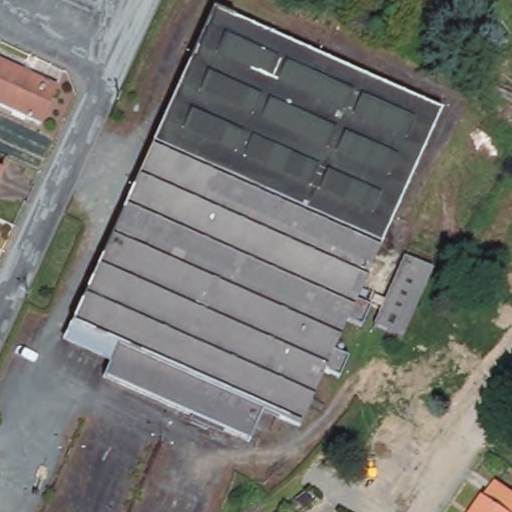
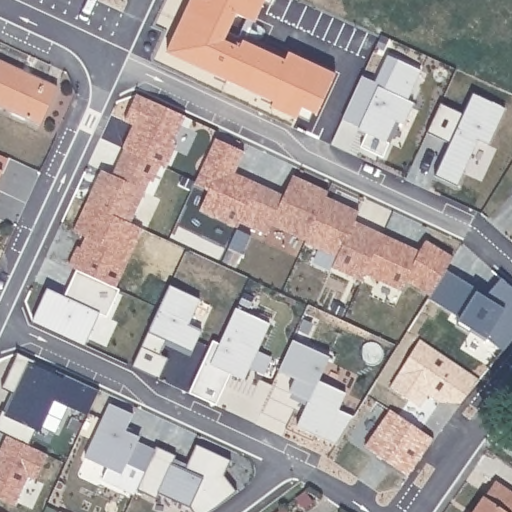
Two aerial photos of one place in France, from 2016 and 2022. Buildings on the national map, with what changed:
new [(225,80),(215,76),(166,53),(180,22),(185,12),(190,0),(207,0),(264,0),(254,23),(247,37),(293,57),(294,56),(335,75),(316,115),(301,108),(296,120),(270,107),(275,96),(272,102),(261,97),(225,80)]
demolished [(379,252),(350,317),(296,433),(260,417),(245,448),(100,382),(109,362),(63,342),(219,2),(447,104),(379,252)]
new [(375,81),(388,54),(421,69),(407,99),(415,102),(405,124),(400,122),(383,157),(360,147),(365,134),(357,130),(360,126),(343,120),(362,76),(375,81)]
unchanged [(0,110),(0,64),(55,92),(38,129),(0,110)]
new [(463,112),(471,93),(505,107),(489,144),(477,139),(457,187),(434,177),(448,142),(426,132),(440,102),(463,112)]
new [(130,130),(135,132),(138,126),(125,120),(136,94),(185,116),(172,142),(175,144),(165,167),(161,165),(125,148),(122,147),(130,130)]
new [(240,220),(236,226),(199,209),(207,189),(193,182),(214,137),(242,150),(233,171),(240,175),(256,183),(240,220)]
new [(113,173),(125,147),(161,165),(155,181),(150,179),(132,222),(87,202),(101,170),(113,173)]
new [(285,193),(293,174),(329,191),(326,196),(360,212),(355,222),(383,234),(366,272),(362,281),(332,267),(336,257),(305,242),(305,241),(271,225),(268,232),(241,220),(257,184),(285,193)]
new [(510,199),(512,196),(512,201),(510,199)]
new [(79,270),(68,265),(77,245),(85,236),(90,237),(73,230),(86,202),(142,227),(115,287),(79,270)]
new [(420,252),(425,242),(454,257),(430,296),(406,282),(402,290),(366,272),(383,234),(420,252)]
demolished [(401,338),(374,328),(403,263),(431,276),(401,338)]
new [(480,291),(477,293),(489,300),(493,295),(490,292),(500,280),(512,289),(512,341),(503,352),(470,333),(467,337),(454,329),(458,322),(425,302),(429,295),(445,270),(480,291)]
new [(120,289),(106,317),(98,312),(85,342),(35,318),(49,287),(67,296),(79,271),(120,289)]
new [(200,298),(189,323),(202,330),(194,351),(166,340),(160,352),(170,357),(161,377),(134,365),(170,285),(200,298)]
new [(224,386),(215,407),(187,394),(211,342),(219,345),(235,310),(268,325),(242,382),(224,372),(229,375),(224,386)]
new [(470,333),(485,342),(483,345),(468,336),(470,333)]
new [(480,380),(460,403),(444,393),(438,402),(427,393),(418,407),(388,386),(420,340),(480,380)]
new [(291,342),(328,358),(317,382),(344,395),(336,411),(353,419),(335,447),(295,428),(306,403),(287,395),(293,381),(277,373),(291,342)]
new [(17,355),(35,362),(32,367),(55,377),(57,372),(99,392),(87,417),(54,402),(40,432),(36,431),(29,447),(7,437),(0,434),(0,416),(2,412),(10,395),(1,390),(17,355)]
new [(132,415),(126,427),(140,433),(138,437),(136,442),(154,451),(135,491),(133,496),(101,481),(107,469),(84,458),(109,405),(132,415)]
new [(389,410),(432,439),(407,476),(365,447),(389,410)]
new [(29,447),(47,456),(35,482),(27,478),(15,507),(0,500),(0,452),(7,437),(29,447)]
new [(155,447),(175,456),(174,460),(187,465),(196,445),(230,461),(224,476),(236,493),(211,512),(191,512),(189,509),(158,495),(155,500),(135,491),(154,451),(155,447)]
unchanged [(495,482),(512,495),(512,512),(473,512),(495,482)]

